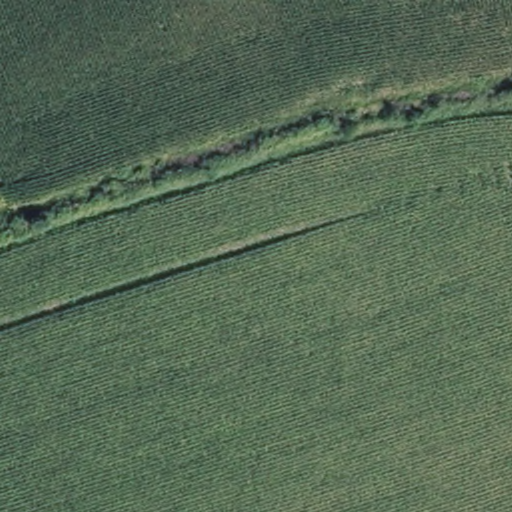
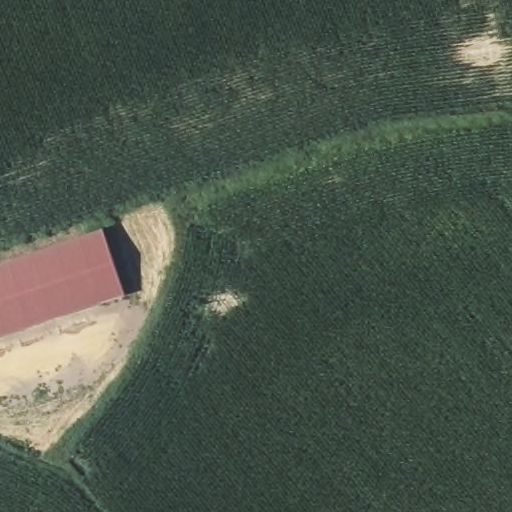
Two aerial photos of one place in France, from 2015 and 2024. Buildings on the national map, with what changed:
new [(104,229),(125,294),(0,337),(0,264),(104,229)]

